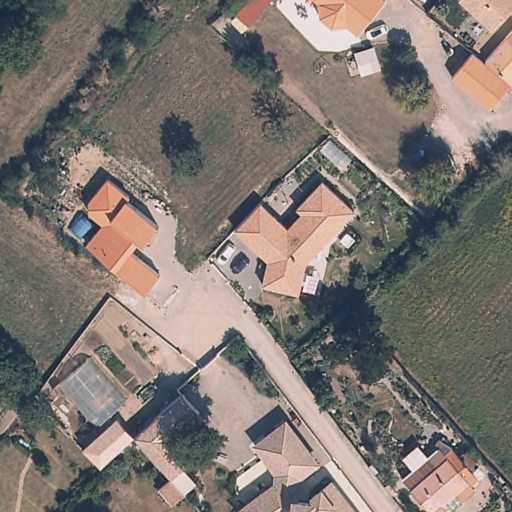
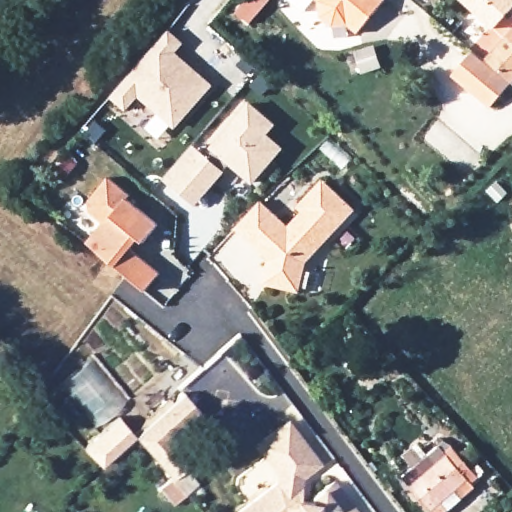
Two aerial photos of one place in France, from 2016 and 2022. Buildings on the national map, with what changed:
unchanged [(356,35),(347,28),(333,30),(318,17),(317,5),(311,0),(384,0),(385,1),(356,35)]
unchanged [(489,34),(456,3),(458,0),(512,0),(512,9),(489,34)]
unchanged [(487,112),(451,77),(472,54),(483,64),(512,30),(512,86),(487,112)]
new [(168,32),(182,44),(171,58),(190,73),(193,69),(213,85),(178,128),(140,97),(128,111),(114,99),(168,32)]
new [(189,202),(165,182),(182,161),(193,147),(198,151),(205,158),(248,104),(273,124),(265,134),(282,147),(254,183),(238,169),(230,164),(213,187),(197,207),(189,202)]
unchanged [(147,290),(88,241),(102,225),(90,212),(89,201),(106,178),(129,197),(126,200),(159,225),(144,243),(139,240),(131,251),(159,273),(147,290)]
unchanged [(356,213),(306,264),(300,294),(261,287),(266,263),(235,232),(259,203),(288,229),(302,216),(295,209),(321,180),(356,213)]
unchanged [(188,393),(204,412),(185,428),(173,438),(193,461),(174,477),(138,434),(169,408),(188,393)]
unchanged [(99,464),(85,447),(117,418),(133,438),(99,464)]
unchanged [(296,477),(294,499),(309,501),(309,497),(328,483),(350,512),(235,512),(239,509),(272,484),(274,473),(271,470),(253,445),(259,440),(275,428),(283,423),(301,448),(313,464),(296,477)]
unchanged [(445,512),(433,512),(432,511),(431,511),(412,489),(404,479),(442,449),(446,453),(453,448),(479,479),(472,484),(474,488),(445,512)]
unchanged [(188,493),(176,502),(163,487),(174,477),(188,493)]

